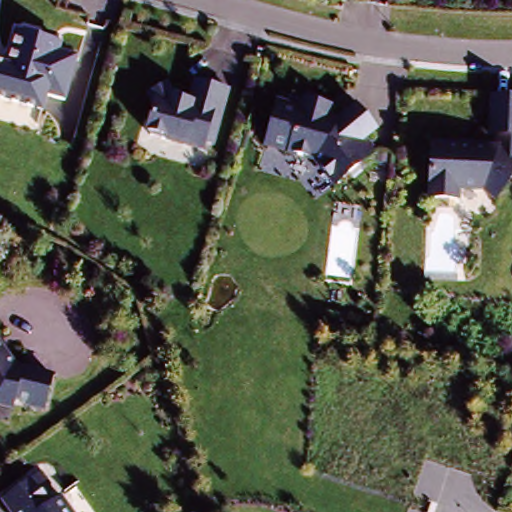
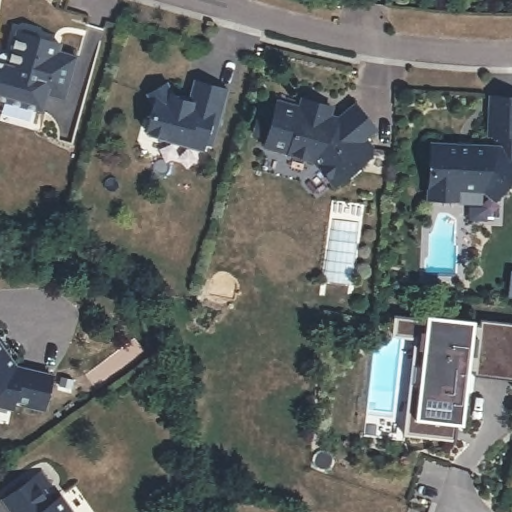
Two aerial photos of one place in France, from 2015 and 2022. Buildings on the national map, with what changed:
unchanged [(40,92),(37,109),(0,99),(0,60),(2,58),(10,31),(14,32),(18,30),(30,33),(33,37),(55,43),(52,51),(70,56),(59,97),(40,92)]
unchanged [(188,80),(222,89),(207,144),(199,142),(197,150),(145,135),(141,129),(148,105),(142,94),(162,83),(167,95),(172,96),(175,100),(175,101),(182,103),(188,80)]
unchanged [(494,194),(482,185),(457,183),(457,194),(428,193),(430,159),(434,156),(430,149),(430,139),(458,140),(458,145),(467,145),(467,141),(487,142),(488,129),(490,91),(512,92),(512,171),(494,194)]
unchanged [(354,104),(375,129),(365,137),(372,147),(372,153),(333,184),(314,160),(264,146),(266,137),(253,134),(257,119),(270,123),(277,101),(298,107),(301,98),(321,104),(331,107),(328,115),(337,117),(354,104)]
demolished [(442,213),(452,219),(450,244),(453,244),(452,274),(422,273),(423,258),(427,256),(427,233),(430,233),(437,213),(442,213)]
new [(470,370),(462,425),(453,425),(452,439),(405,435),(415,336),(392,334),(393,316),(427,315),(477,320),(512,323),(512,379),(470,370)]
unchanged [(43,411),(13,404),(12,407),(0,404),(0,351),(15,371),(50,380),(43,411)]
unchanged [(35,476),(52,501),(60,496),(72,512),(10,512),(2,500),(35,476)]

